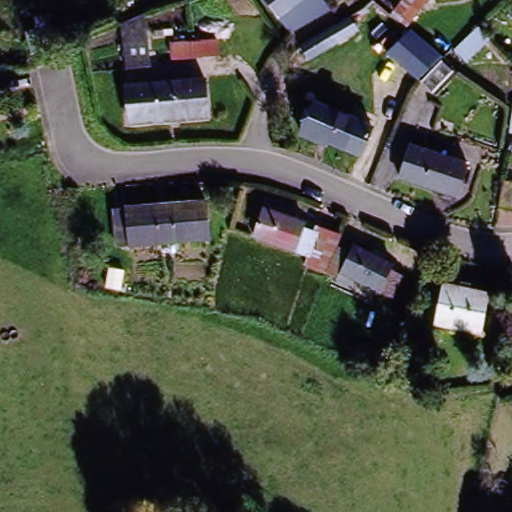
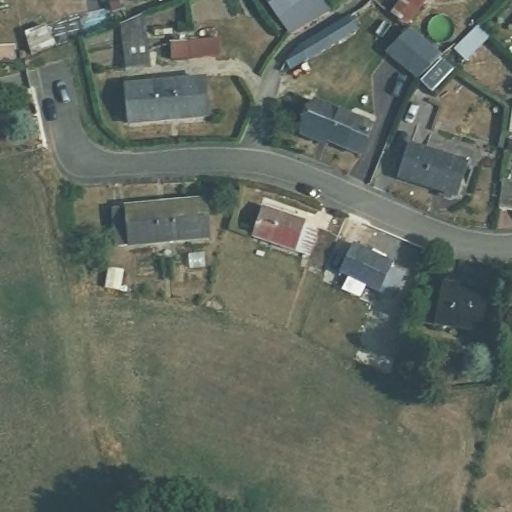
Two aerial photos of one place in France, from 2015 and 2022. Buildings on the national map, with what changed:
unchanged [(263,0),(319,0),(320,1),(325,9),(287,32),(275,16),(263,0)]
unchanged [(394,15),(407,0),(421,0),(402,22),(394,15)]
unchanged [(127,69),(123,19),(148,17),(152,67),(127,69)]
unchanged [(302,46),(328,31),(347,20),(355,34),(337,45),(312,61),(302,46)]
unchanged [(464,62),(454,51),(477,30),(487,41),(464,62)]
unchanged [(390,55),(410,32),(440,58),(420,80),(390,55)]
unchanged [(215,40),(216,56),(174,60),(173,44),(215,40)]
unchanged [(432,95),(421,84),(442,64),(452,75),(432,95)]
unchanged [(129,124),(127,87),(157,85),(174,84),(205,81),(208,118),(177,120),(160,121),(129,124)]
unchanged [(302,135),(315,107),(367,130),(372,132),(359,161),(342,153),(302,135)]
unchanged [(418,179),(402,174),(412,143),(427,148),(470,161),(460,191),(418,179)]
unchanged [(506,179),(512,180),(512,209),(500,207),(506,179)]
unchanged [(115,215),(127,215),(160,211),(174,210),(206,207),(209,242),(130,250),(119,250),(115,215)]
unchanged [(305,268),(308,260),(255,242),(265,213),(305,226),(303,233),(315,237),(317,232),(338,240),(335,251),(337,252),(327,276),(305,268)]
unchanged [(380,297),(342,278),(339,283),(327,278),(327,276),(337,252),(352,258),(355,251),(393,270),(390,275),(403,282),(392,303),(380,297)]
unchanged [(485,330),(442,323),(447,285),(491,291),(485,330)]
unchanged [(360,356),(365,338),(392,346),(387,364),(360,356)]

